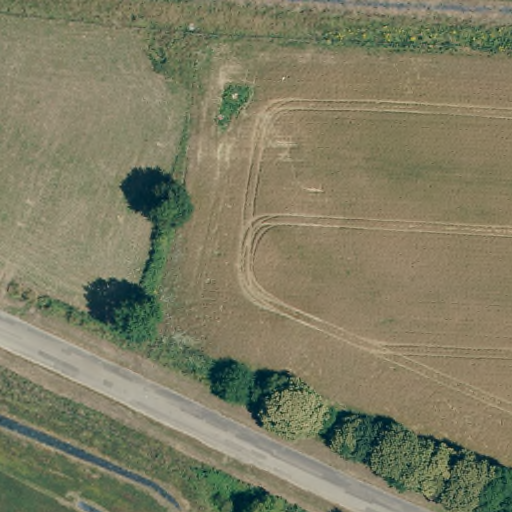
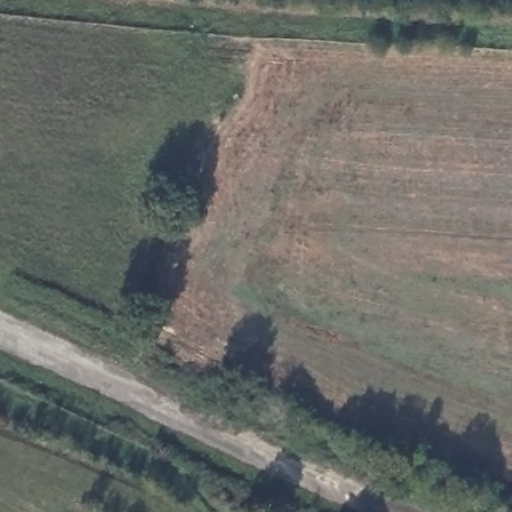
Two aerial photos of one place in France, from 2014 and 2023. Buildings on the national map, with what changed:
[]

